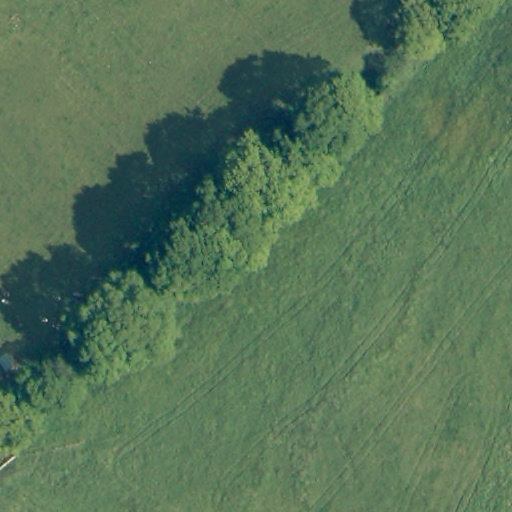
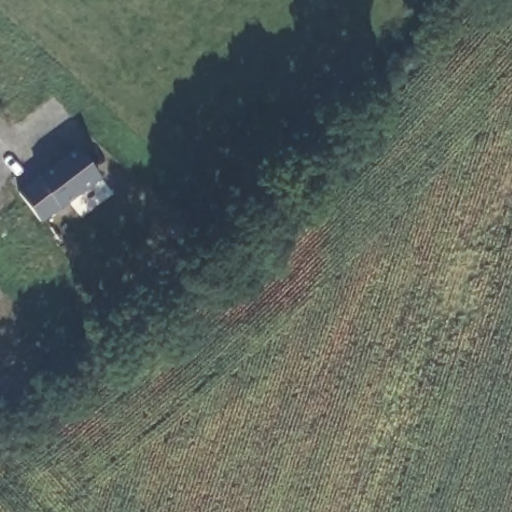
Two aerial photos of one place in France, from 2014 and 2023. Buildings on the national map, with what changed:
new [(101,177),(60,207),(42,221),(19,190),(37,176),(77,145),(101,177)]

